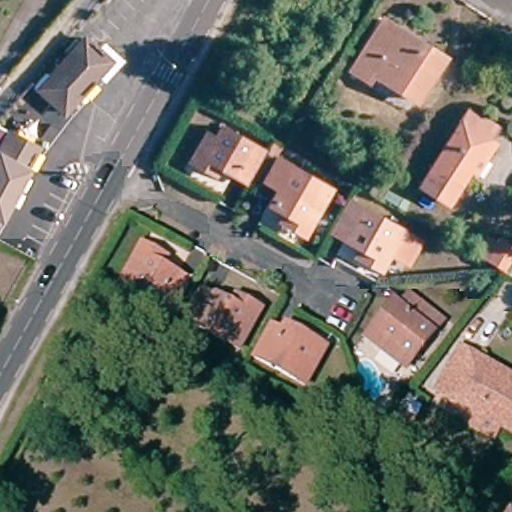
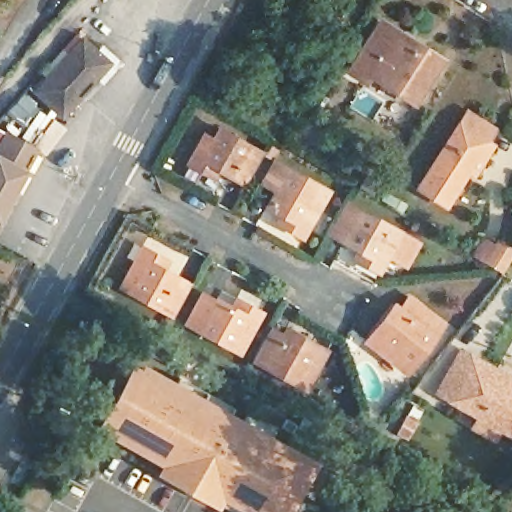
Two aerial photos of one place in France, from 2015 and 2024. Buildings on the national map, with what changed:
unchanged [(412,103),(367,75),(363,81),(349,72),(381,22),(440,59),(412,103)]
unchanged [(72,46),(97,69),(55,120),(27,99),(72,46)]
unchanged [(476,167),(470,164),(449,197),(422,179),(470,103),(497,120),(489,134),(495,137),(476,167)]
unchanged [(0,129),(37,146),(22,171),(0,159),(0,129)]
unchanged [(184,169),(193,152),(201,140),(209,145),(215,135),(259,160),(241,190),(212,174),(207,182),(184,169)]
unchanged [(0,213),(0,159),(22,171),(0,213)]
unchanged [(278,222),(284,215),(268,206),(277,191),(265,184),(277,162),(330,192),(320,210),(303,237),(278,222)]
unchanged [(347,262),(352,254),(323,237),(340,207),(410,248),(397,270),(380,260),(371,276),(347,262)]
unchanged [(512,252),(512,253),(499,273),(482,263),(470,256),(481,239),(492,246),(496,241),(512,252)]
unchanged [(167,320),(121,295),(127,285),(118,280),(126,267),(135,252),(159,266),(154,275),(184,290),(167,320)]
unchanged [(183,322),(200,293),(215,301),(216,300),(229,307),(234,298),(258,312),(250,328),(236,351),(183,322)]
unchanged [(439,324),(401,370),(367,344),(361,338),(390,302),(397,309),(407,297),(439,324)]
unchanged [(248,358),(266,328),(280,336),(284,328),(322,350),(314,365),(301,389),(248,358)]
unchanged [(476,432),(481,426),(436,401),(446,385),(462,359),(477,367),(512,388),(512,443),(502,437),(498,445),(476,432)]
new [(222,500),(219,507),(156,470),(160,462),(103,430),(106,425),(98,420),(132,360),(141,366),(144,360),(319,460),(289,512),(246,512),(222,500)]

